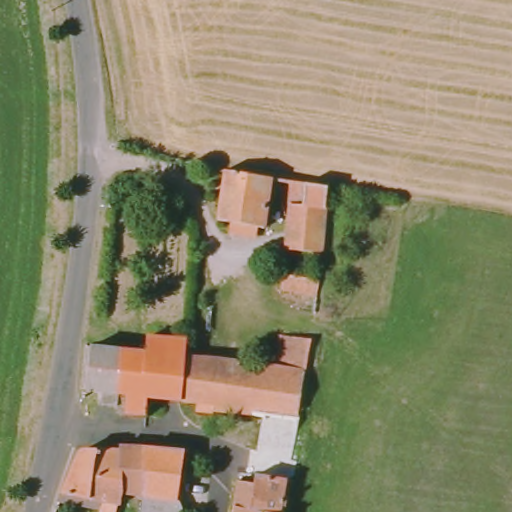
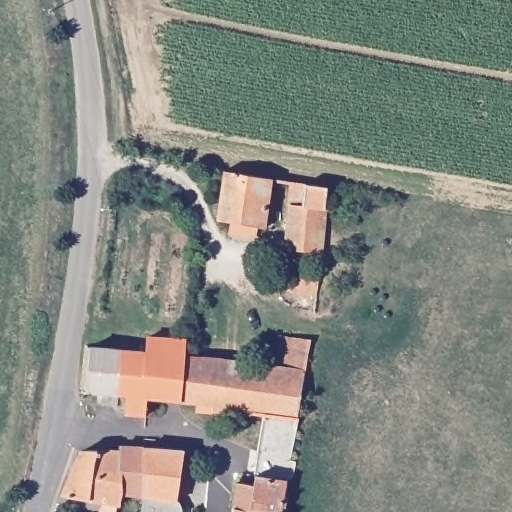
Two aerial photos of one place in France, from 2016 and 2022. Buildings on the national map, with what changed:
unchanged [(269,177),(266,227),(218,219),(224,170),(269,177)]
unchanged [(283,207),(298,208),(302,184),(325,187),(322,212),(321,254),(278,252),(283,207)]
unchanged [(284,292),(286,275),(309,279),(311,264),(323,267),(319,296),(284,292)]
unchanged [(269,336),(302,340),(298,373),(266,369),(269,336)]
unchanged [(181,361),(177,405),(144,403),(143,419),(122,419),(123,399),(112,399),(116,357),(138,357),(140,343),(181,343),(181,361)]
unchanged [(116,357),(112,399),(80,398),(83,354),(116,357)]
unchanged [(188,406),(177,405),(181,361),(266,369),(298,373),(291,423),(244,419),(198,417),(188,416),(188,406)]
unchanged [(291,479),(283,479),(283,484),(253,480),(255,451),(243,450),(244,419),(291,423),(287,461),(293,462),(291,479)]
unchanged [(142,502),(139,502),(136,501),(118,498),(116,512),(99,512),(58,501),(68,463),(75,458),(115,459),(115,453),(139,454),(179,457),(176,501),(176,512),(140,512),(142,502)]
unchanged [(236,487),(251,489),(253,480),(283,484),(280,501),(286,501),(284,507),(277,507),(276,512),(232,512),(236,487)]

